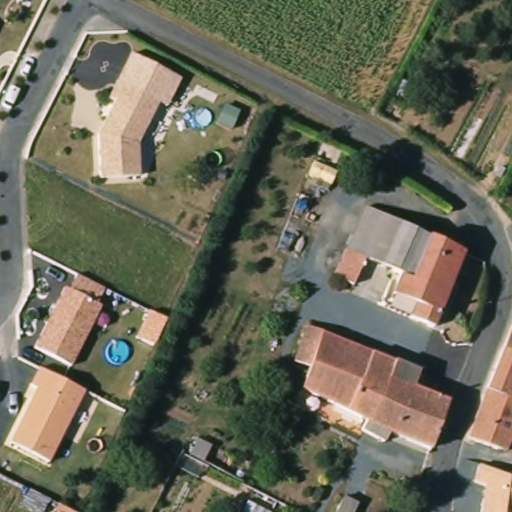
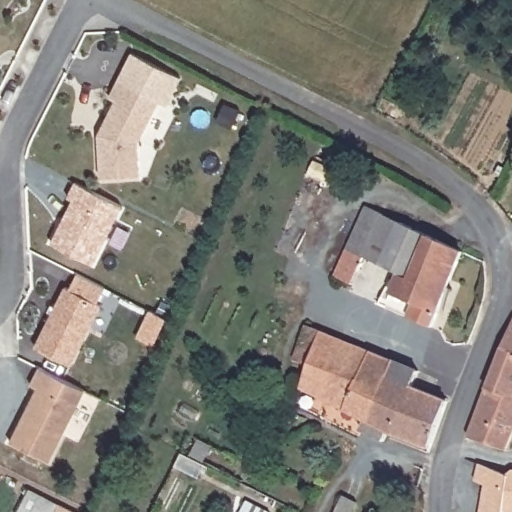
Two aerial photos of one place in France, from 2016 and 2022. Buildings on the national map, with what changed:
unchanged [(98,135),(115,100),(108,97),(131,54),(174,75),(181,79),(166,106),(159,103),(138,143),(140,175),(101,178),(98,135)]
new [(93,265),(50,244),(72,201),(67,199),(75,183),(122,206),(93,265)]
unchanged [(341,266),(349,249),(368,211),(429,241),(411,278),(368,259),(359,275),(341,266)]
unchanged [(359,275),(368,259),(411,278),(429,241),(465,259),(431,331),(431,332),(388,312),(381,308),(390,289),(359,275)]
unchanged [(35,347),(64,288),(70,289),(79,274),(104,287),(95,303),(101,305),(72,366),(35,347)]
unchanged [(343,413),(316,398),(306,393),(278,380),(287,358),(271,351),(286,317),(291,319),(296,321),(357,349),(374,356),(398,367),(391,386),(452,407),(450,411),(437,454),(412,447),(398,442),(389,438),(384,447),(361,434),(338,422),(343,413)]
unchanged [(512,345),(512,366),(505,364),(512,345)]
unchanged [(512,459),(474,445),(505,364),(512,366),(512,459)]
unchanged [(81,392),(44,463),(6,443),(34,389),(27,386),(36,368),(81,392)]
unchanged [(481,467),(509,475),(512,474),(512,512),(482,512),(487,487),(476,483),(481,467)]
unchanged [(273,512),(242,512),(252,491),(277,502),(273,512)]
unchanged [(359,512),(342,512),(346,504),(359,512)]
unchanged [(58,510),(62,512),(57,512),(58,510)]

